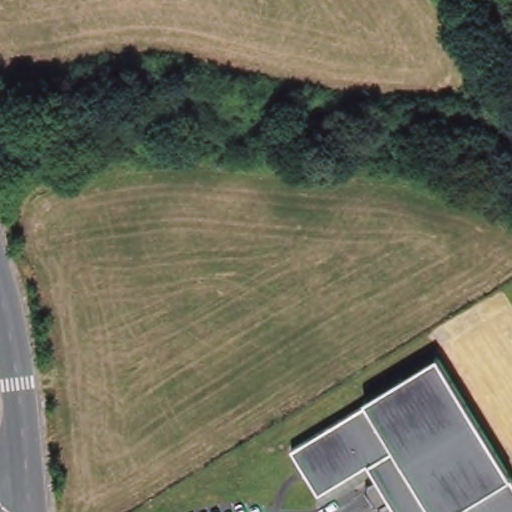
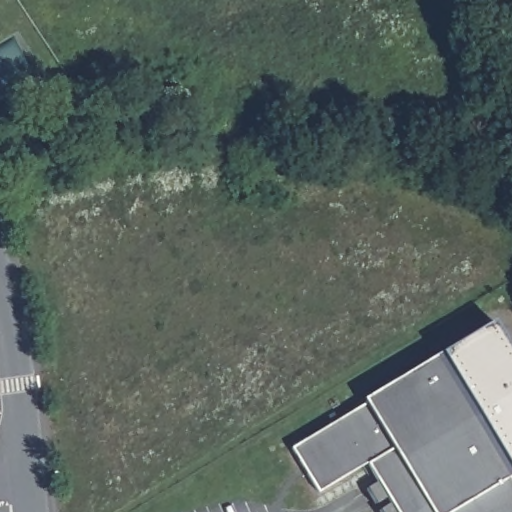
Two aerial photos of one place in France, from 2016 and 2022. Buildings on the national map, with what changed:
new [(442,353),(494,322),(512,352),(512,485),(435,360),(442,353)]
unchanged [(391,507),(386,499),(377,504),(369,490),(378,485),(367,465),(316,495),(290,453),(370,406),(367,401),(435,360),(512,485),(512,512),(383,512),(391,507)]

